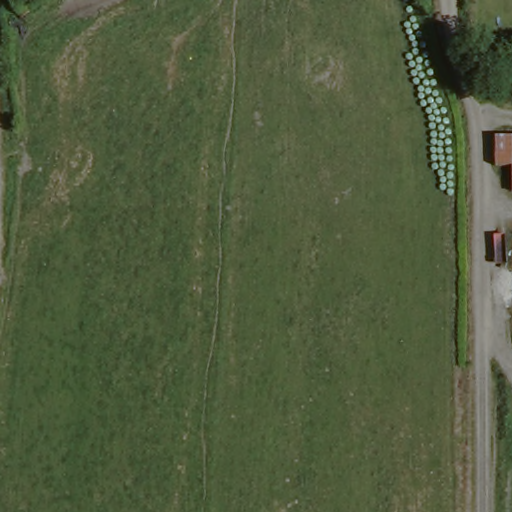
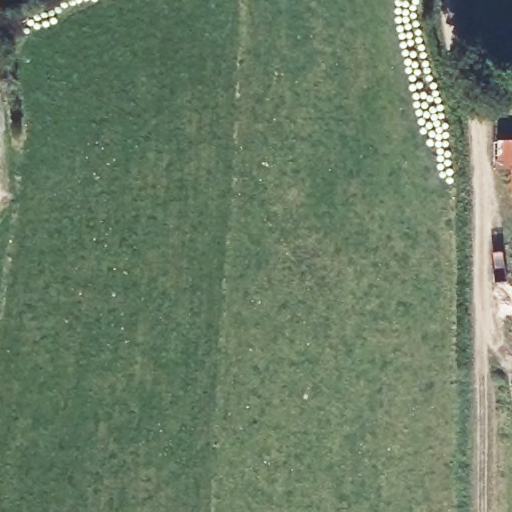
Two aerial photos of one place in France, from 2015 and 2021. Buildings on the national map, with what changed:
unchanged [(512,198),(512,199),(511,173),(491,172),(493,140),(512,140),(512,198)]

